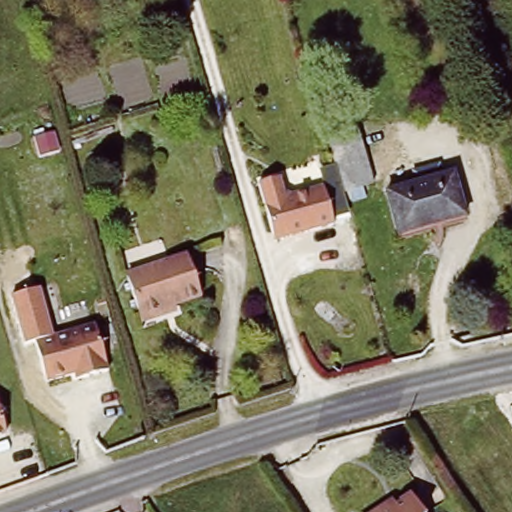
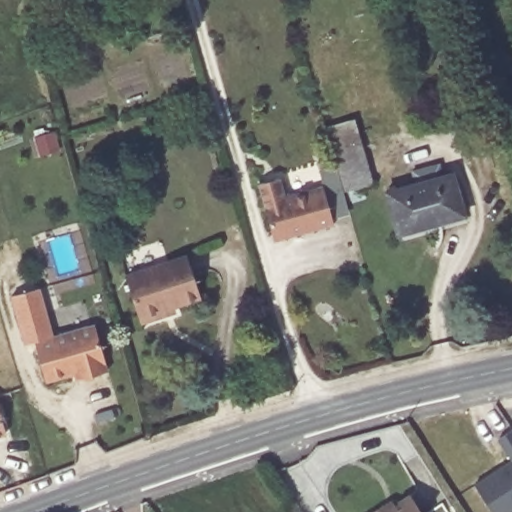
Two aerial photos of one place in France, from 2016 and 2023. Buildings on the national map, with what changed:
unchanged [(329,143),(359,135),(376,197),(347,205),(329,143)]
unchanged [(469,220),(403,241),(390,198),(420,188),(416,175),(442,167),(446,180),(456,177),(469,220)]
unchanged [(276,180),(279,191),(287,196),(318,187),(330,227),(279,243),(269,237),(254,186),(276,180)]
unchanged [(141,326),(138,319),(125,278),(186,259),(198,301),(173,309),(174,315),(141,326)]
unchanged [(52,336),(94,324),(106,369),(44,383),(34,343),(21,345),(9,295),(41,287),(52,336)]
new [(493,512),(474,485),(512,459),(497,438),(512,429),(512,511),(510,512),(493,512)]
unchanged [(416,512),(397,512),(411,504),(416,512)]

